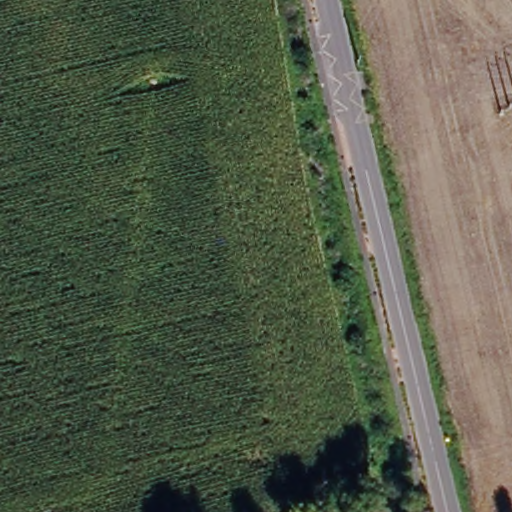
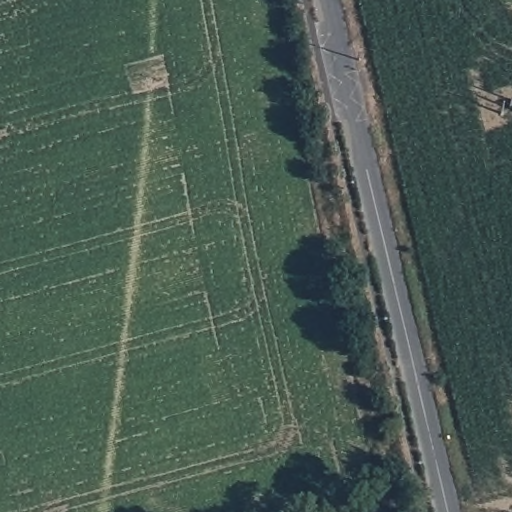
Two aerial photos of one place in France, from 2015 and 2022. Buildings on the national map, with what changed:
[]

